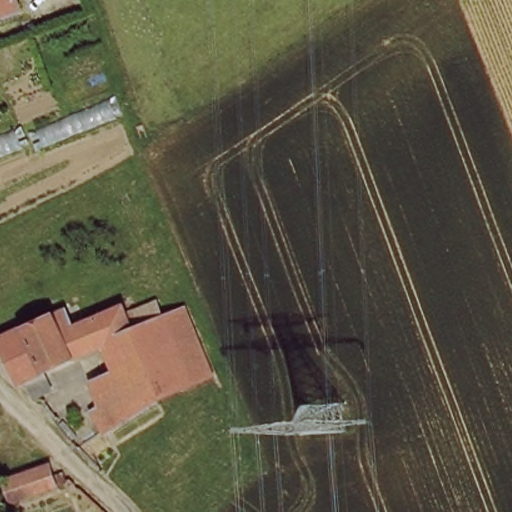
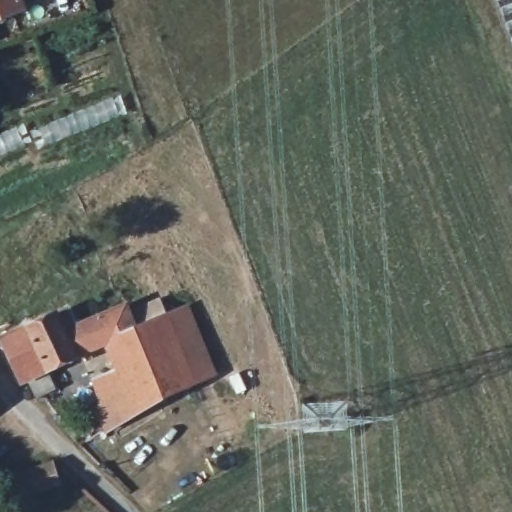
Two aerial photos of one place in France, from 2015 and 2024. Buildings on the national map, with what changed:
unchanged [(0,14),(0,0),(26,0),(28,5),(0,14)]
new [(496,0),(512,0),(512,42),(496,0)]
unchanged [(41,398),(34,378),(25,383),(6,339),(76,310),(80,321),(130,301),(140,324),(106,347),(50,371),(58,391),(41,398)]
unchanged [(116,370),(106,347),(140,324),(193,307),(216,377),(110,427),(92,380),(116,370)]
unchanged [(60,482),(15,498),(8,477),(53,461),(60,482)]

